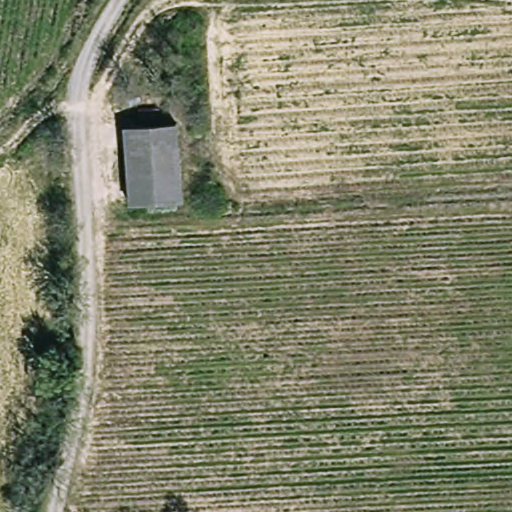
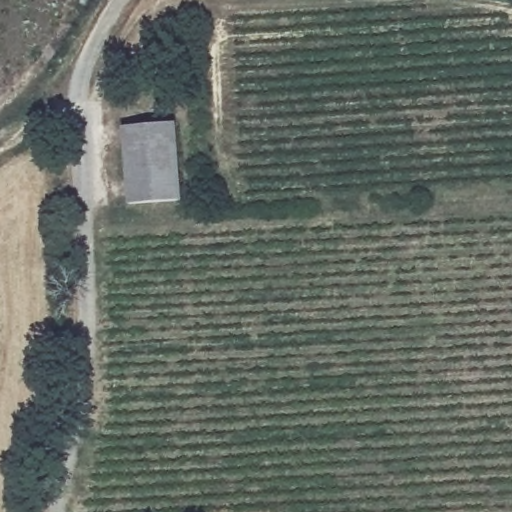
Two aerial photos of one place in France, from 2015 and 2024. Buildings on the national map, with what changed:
unchanged [(127,127),(178,123),(184,199),(131,201),(127,127)]

